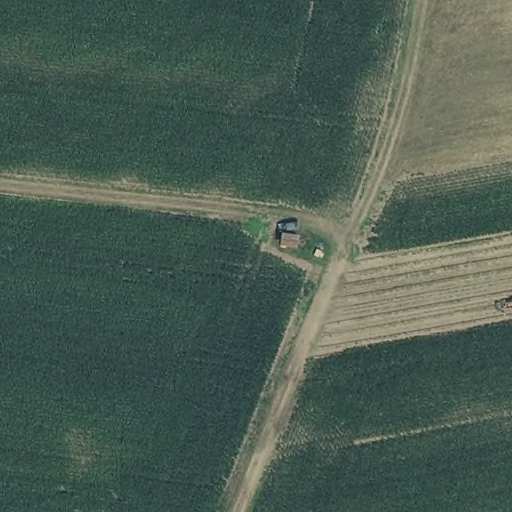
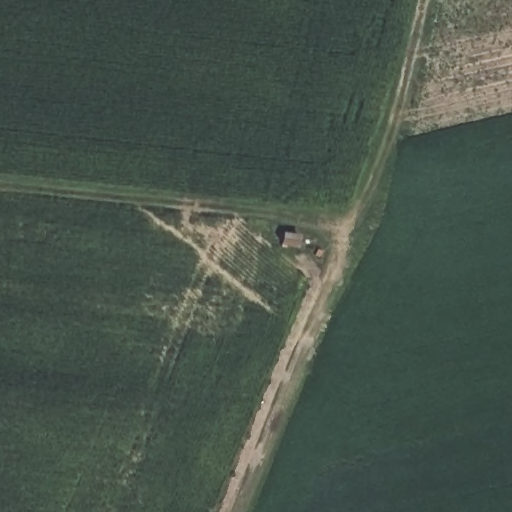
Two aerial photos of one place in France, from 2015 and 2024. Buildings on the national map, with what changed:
unchanged [(291,247),(273,244),(275,230),(295,232),(291,247)]

